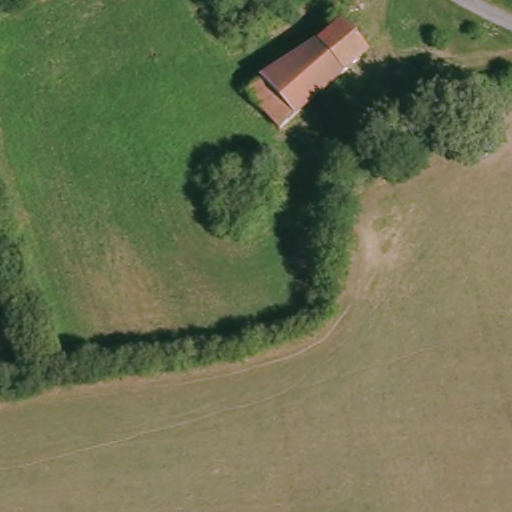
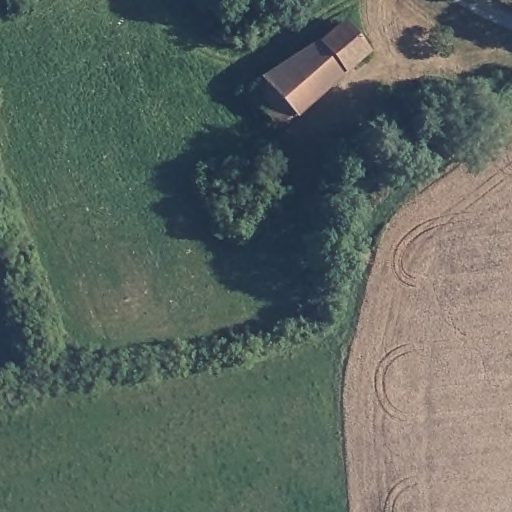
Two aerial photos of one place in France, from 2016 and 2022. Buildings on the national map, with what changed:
unchanged [(278,125),(276,122),(247,90),(336,20),(361,48),(278,125)]

